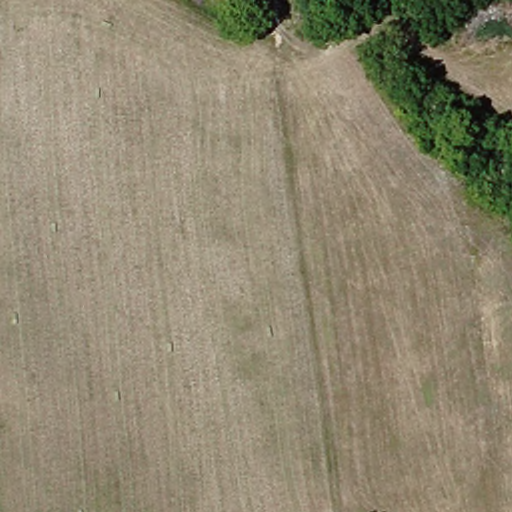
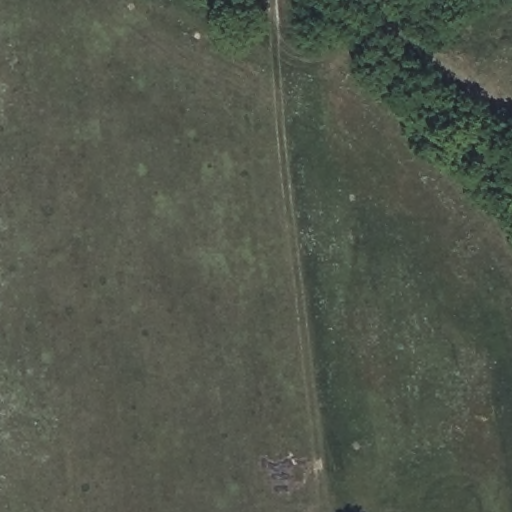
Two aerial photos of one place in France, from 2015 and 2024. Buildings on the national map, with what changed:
unchanged [(248,11),(223,0),(253,0),(248,11)]

